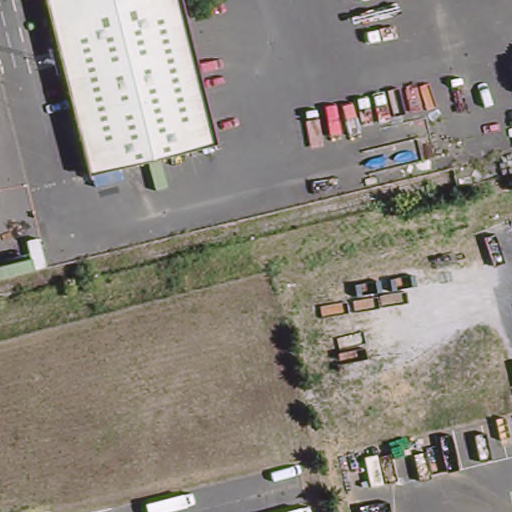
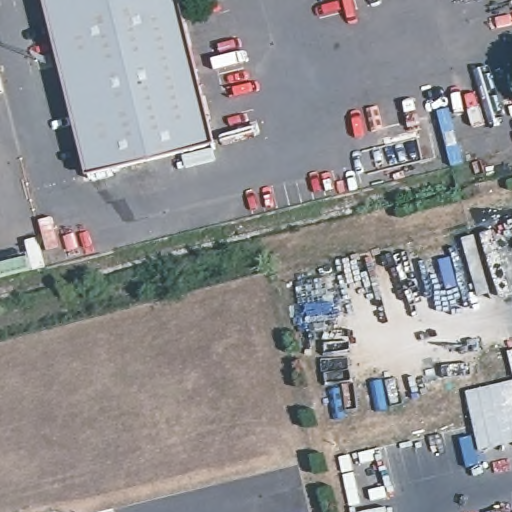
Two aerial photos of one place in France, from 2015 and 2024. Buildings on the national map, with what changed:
unchanged [(218,145),(88,176),(46,0),(182,0),(218,145)]
new [(481,452),(466,392),(512,380),(512,443),(481,452)]

